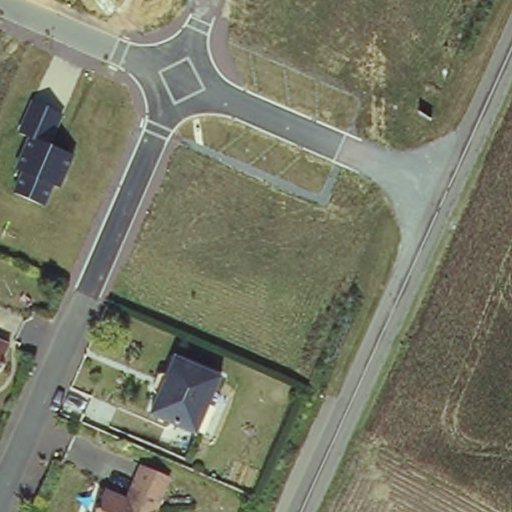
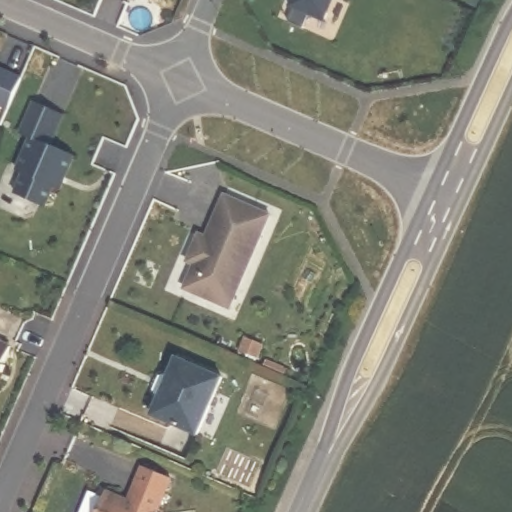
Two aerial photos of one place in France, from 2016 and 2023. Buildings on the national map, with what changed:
new [(285,9),(289,0),(331,0),(320,25),(285,9)]
new [(306,19),(299,33),(283,26),(290,12),(306,19)]
new [(4,112),(0,110),(0,75),(16,82),(4,112)]
unchanged [(61,189),(52,185),(45,205),(13,191),(21,172),(14,169),(27,138),(17,134),(32,97),(64,111),(50,144),(75,157),(61,189)]
new [(265,220),(224,314),(179,294),(189,270),(182,266),(194,239),(201,242),(220,200),(265,220)]
unchanged [(9,359),(11,360),(7,367),(6,366),(1,377),(0,377),(0,335),(16,342),(9,359)]
unchanged [(166,393),(164,387),(169,375),(175,373),(182,357),(225,376),(201,428),(159,409),(166,393)]
unchanged [(157,509),(156,512),(96,512),(107,487),(129,497),(132,492),(145,463),(172,475),(157,509)]

